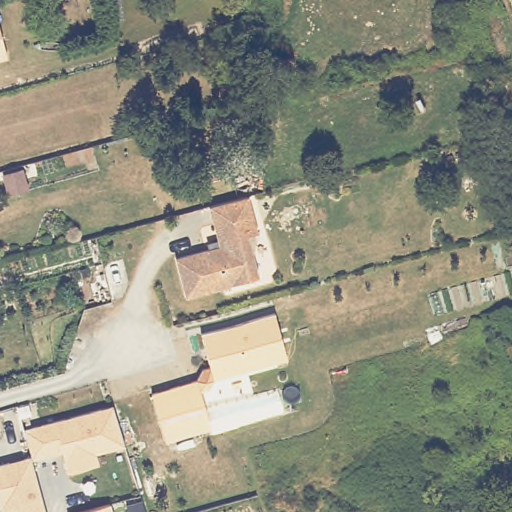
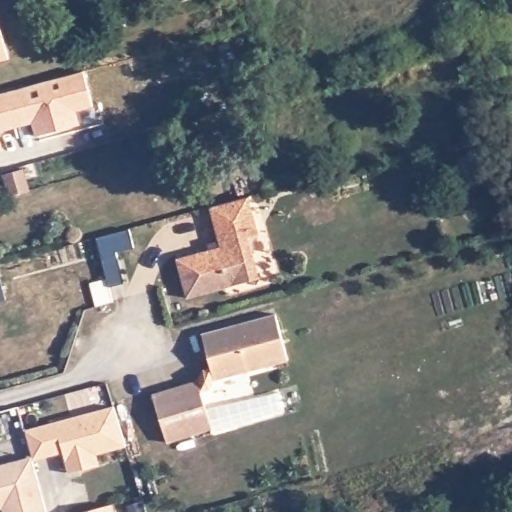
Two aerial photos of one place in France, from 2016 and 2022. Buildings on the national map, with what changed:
unchanged [(1,15),(14,59),(0,63),(0,15),(1,15)]
new [(85,68),(94,105),(77,110),(81,121),(33,134),(29,122),(0,131),(0,91),(85,68)]
new [(2,143),(0,143),(0,135),(2,143)]
unchanged [(229,180),(232,192),(214,200),(209,186),(229,180)]
unchanged [(247,284),(188,300),(177,260),(211,252),(220,242),(211,209),(250,199),(260,236),(250,239),(255,257),(261,280),(247,284)]
new [(110,284),(102,260),(95,237),(127,228),(132,246),(116,250),(117,255),(125,280),(110,284)]
unchanged [(202,331),(276,312),(288,359),(215,378),(209,387),(200,390),(198,381),(197,378),(204,367),(211,366),(202,331)]
unchanged [(200,390),(212,430),(166,442),(151,395),(152,396),(198,381),(200,390)]
unchanged [(23,430),(114,405),(125,446),(98,455),(100,465),(67,474),(59,453),(31,461),(30,457),(23,430)]
unchanged [(30,457),(31,461),(45,512),(1,512),(1,510),(0,510),(0,465),(30,457)]
unchanged [(112,505),(114,512),(88,512),(112,505)]

